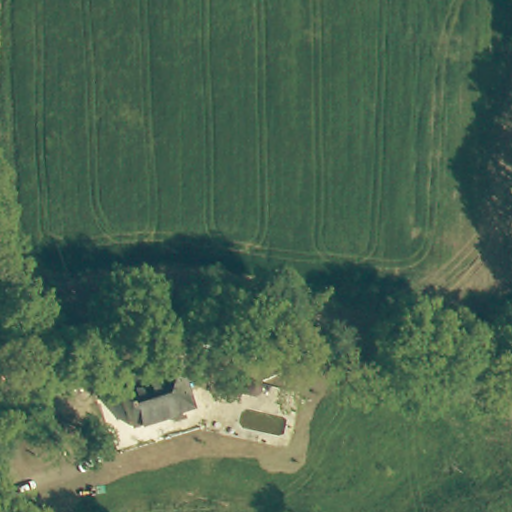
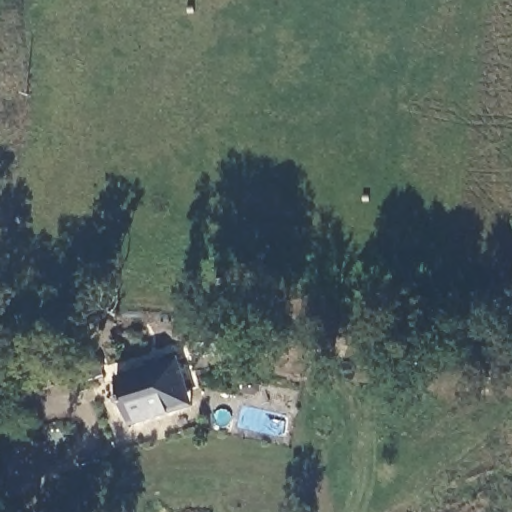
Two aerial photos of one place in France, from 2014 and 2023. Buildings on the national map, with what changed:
unchanged [(102,365),(82,375),(71,351),(91,342),(102,365)]
unchanged [(195,410),(134,431),(117,385),(180,365),(195,410)]

